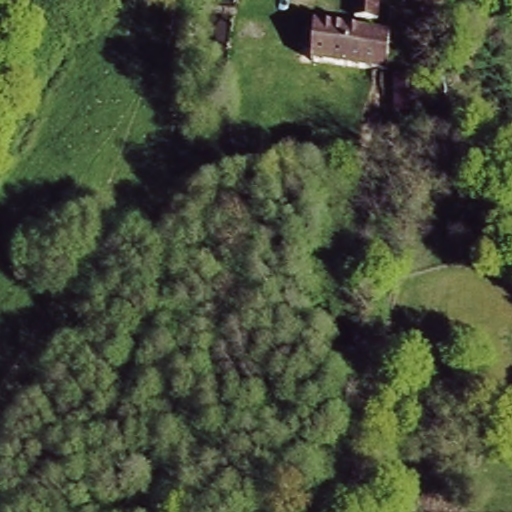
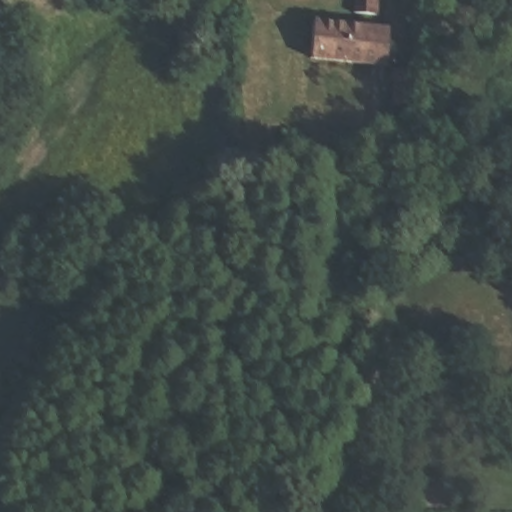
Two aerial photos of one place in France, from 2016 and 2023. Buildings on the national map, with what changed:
unchanged [(357,14),(357,0),(381,0),(381,2),(395,3),(394,16),(357,14)]
unchanged [(352,56),(305,53),(307,41),(319,42),(320,21),(394,26),(389,59),(385,83),(382,83),(374,82),(350,80),(352,56)]
unchanged [(397,74),(419,76),(414,110),(392,107),(397,74)]

